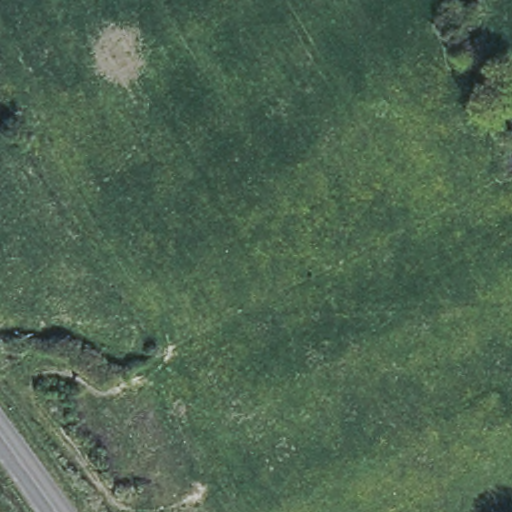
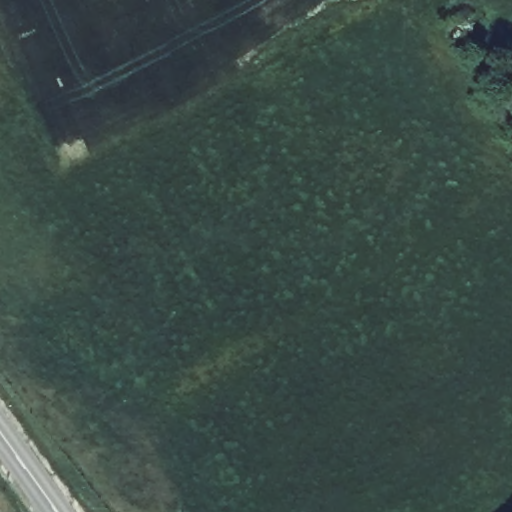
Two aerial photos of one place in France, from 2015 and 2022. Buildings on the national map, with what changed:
[]

